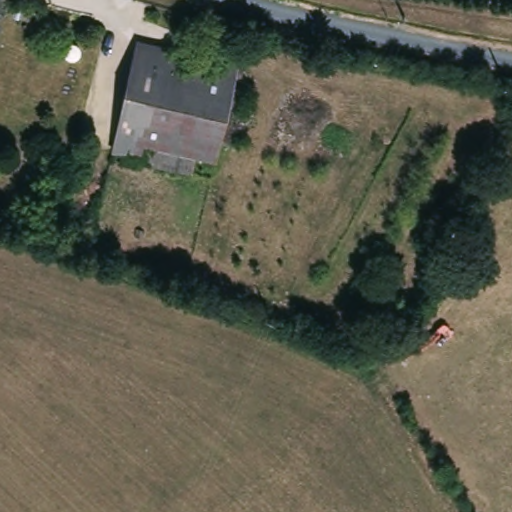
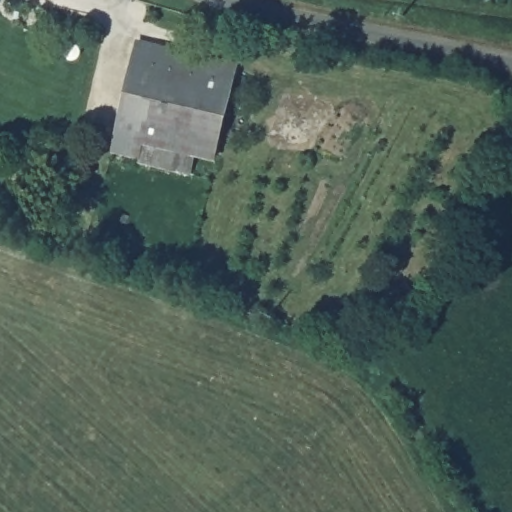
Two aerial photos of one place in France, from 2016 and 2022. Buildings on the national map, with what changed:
unchanged [(142,161),(143,157),(118,151),(143,42),(240,65),(219,159),(199,155),(195,172),(142,161)]

